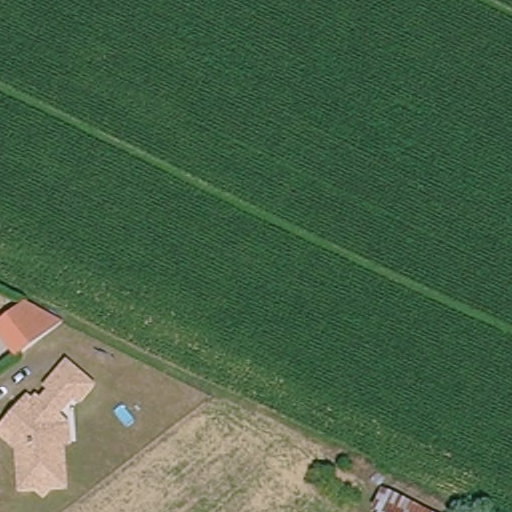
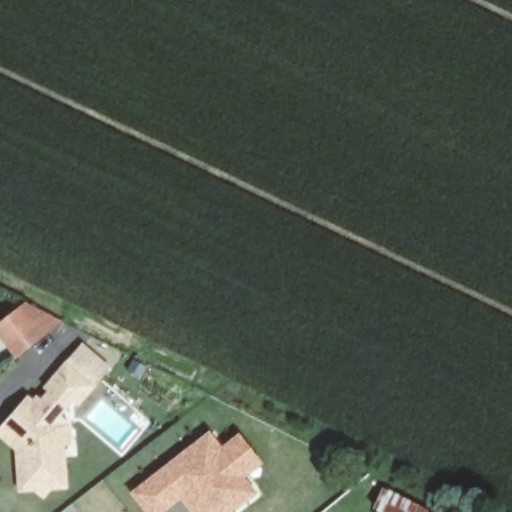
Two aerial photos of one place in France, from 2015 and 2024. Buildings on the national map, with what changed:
unchanged [(66,323),(23,356),(16,346),(0,327),(28,304),(54,317),(66,323)]
unchanged [(76,442),(67,442),(68,485),(59,486),(49,495),(38,486),(26,487),(24,446),(14,436),(10,431),(37,401),(47,406),(60,392),(56,386),(76,367),(87,377),(99,388),(87,402),(83,399),(63,417),(63,423),(75,423),(76,442)]
new [(239,431),(262,463),(247,476),(257,490),(230,512),(190,512),(180,500),(162,512),(144,512),(129,492),(209,431),(219,447),(239,431)]
unchanged [(424,512),(377,512),(386,493),(424,512)]

